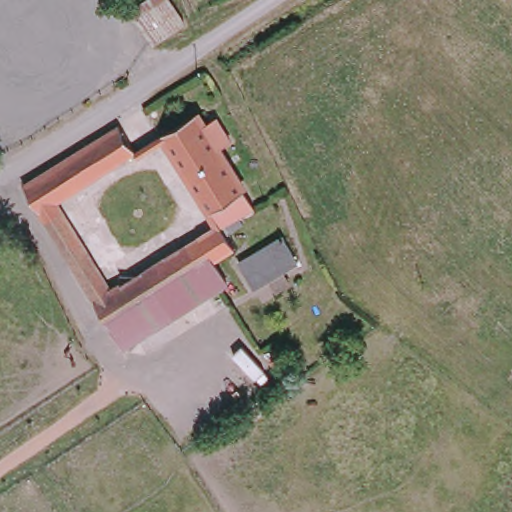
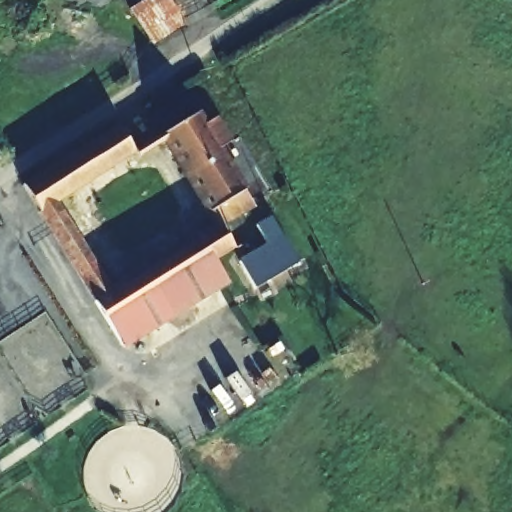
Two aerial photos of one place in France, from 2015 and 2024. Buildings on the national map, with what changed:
unchanged [(159,43),(135,7),(146,0),(179,0),(192,20),(159,43)]
unchanged [(137,149),(57,199),(112,289),(218,224),(164,131),(196,110),(204,120),(215,112),(230,136),(217,145),(252,202),(231,216),(245,240),(215,258),(229,281),(169,319),(160,307),(147,317),(140,307),(112,323),(24,181),(119,122),(137,149)]
unchanged [(304,257),(260,286),(245,262),(289,234),(304,257)]

